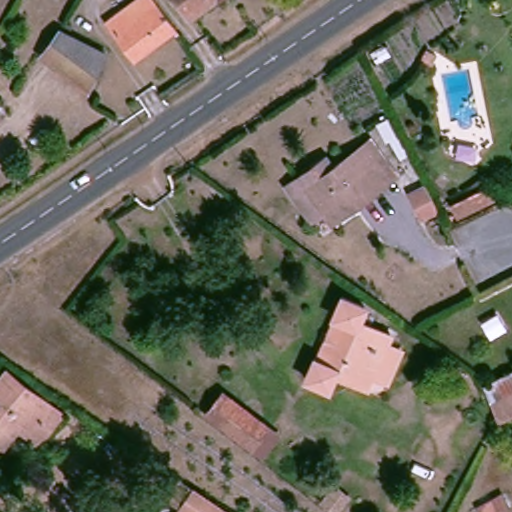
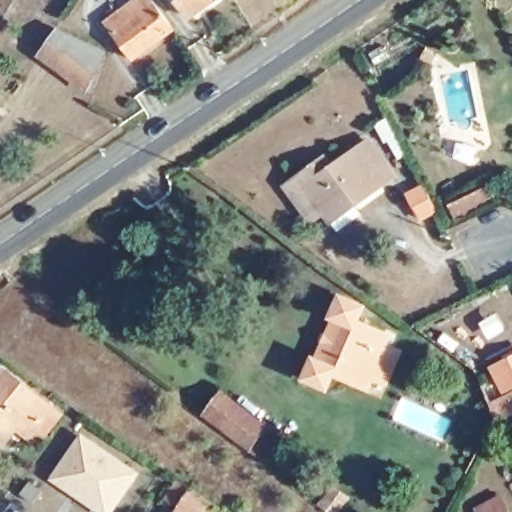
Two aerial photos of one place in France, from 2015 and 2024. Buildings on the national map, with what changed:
unchanged [(137,50),(110,12),(126,0),(135,12),(151,0),(165,0),(179,19),(137,50)]
unchanged [(195,13),(185,0),(213,0),(195,13)]
unchanged [(46,56),(64,31),(110,55),(92,90),(46,56)]
unchanged [(428,57),(437,52),(442,64),(434,68),(428,57)]
unchanged [(2,106),(0,108),(0,104),(2,106)]
unchanged [(322,222),(296,187),(309,178),(317,188),(380,142),(405,176),(367,203),(361,194),(335,212),(322,222)]
unchanged [(419,183),(431,211),(416,219),(405,194),(419,183)]
unchanged [(485,184),(494,202),(453,225),(443,205),(485,184)]
unchanged [(327,367),(320,382),(297,372),(306,352),(307,353),(325,311),(323,310),(332,290),(356,300),(348,316),(385,331),(381,340),(395,346),(382,377),(367,371),(362,383),(327,367)]
unchanged [(14,436),(0,426),(0,380),(16,361),(72,405),(45,436),(27,421),(14,436)]
unchanged [(482,403),(512,387),(512,405),(487,417),(482,403)]
unchanged [(267,451),(255,443),(212,410),(227,389),(271,421),(282,431),(267,451)]
new [(81,432),(141,473),(112,512),(98,512),(49,479),(81,432)]
unchanged [(197,482),(241,512),(193,512),(182,505),(197,482)]
unchanged [(325,512),(314,504),(325,490),(336,498),(326,512),(325,512)]
unchanged [(512,512),(504,512),(512,508),(512,512)]

